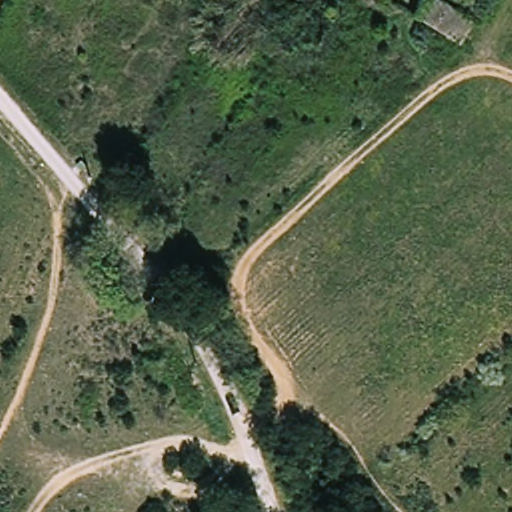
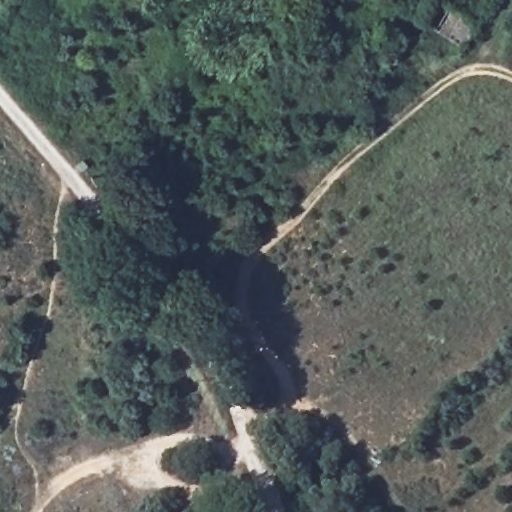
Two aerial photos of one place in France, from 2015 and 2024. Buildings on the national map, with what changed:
unchanged [(464,44),(422,15),(421,15),(431,0),(448,0),(480,21),(464,44)]

